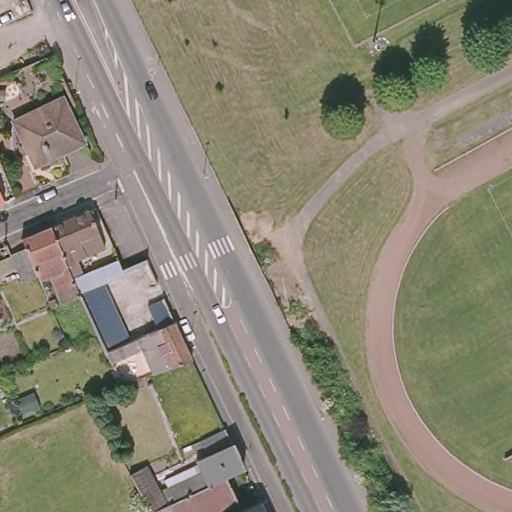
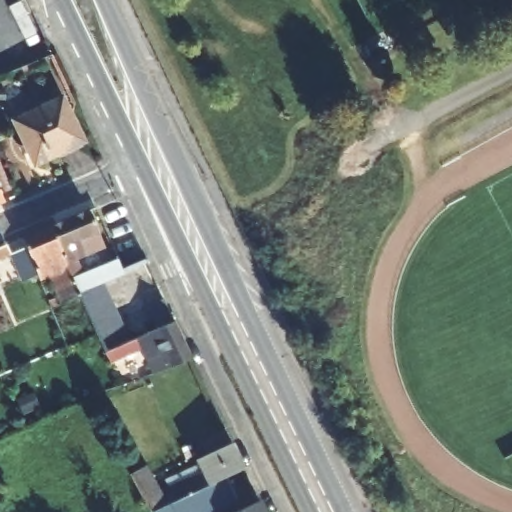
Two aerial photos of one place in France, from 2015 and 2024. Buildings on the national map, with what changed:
unchanged [(62,96),(84,145),(36,165),(15,116),(62,96)]
unchanged [(94,337),(92,333),(87,322),(80,307),(77,297),(75,293),(56,301),(45,274),(35,278),(33,274),(17,281),(4,253),(22,246),(20,239),(48,227),(88,209),(103,245),(82,253),(84,258),(72,263),(77,276),(115,260),(122,273),(100,282),(107,296),(113,311),(120,327),(127,342),(158,328),(147,305),(162,299),(173,322),(180,337),(191,359),(150,373),(138,349),(107,362),(101,352),(94,337)]
unchanged [(48,294),(52,302),(47,305),(42,296),(48,294)]
unchanged [(145,507),(142,507),(122,470),(142,461),(152,484),(193,466),(182,441),(220,424),(238,463),(220,472),(145,507)]
unchanged [(220,472),(232,496),(195,512),(147,512),(145,507),(220,472)]
unchanged [(255,497),(262,512),(222,512),(255,497)]

